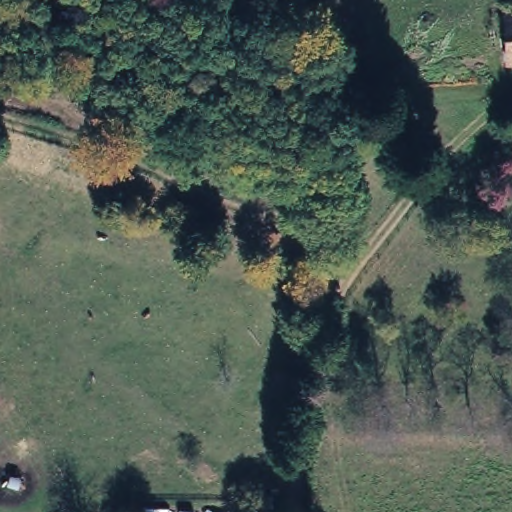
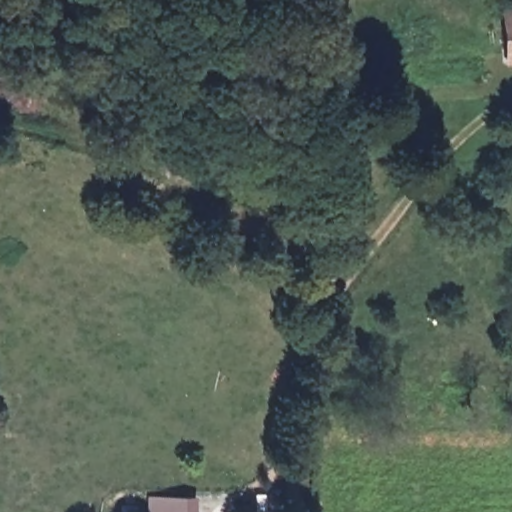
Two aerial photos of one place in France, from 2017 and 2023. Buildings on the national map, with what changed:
unchanged [(512,12),(512,61),(506,61),(503,12),(512,12)]
unchanged [(162,165),(171,141),(204,151),(197,178),(162,165)]
new [(197,496),(197,512),(148,512),(149,495),(197,496)]

